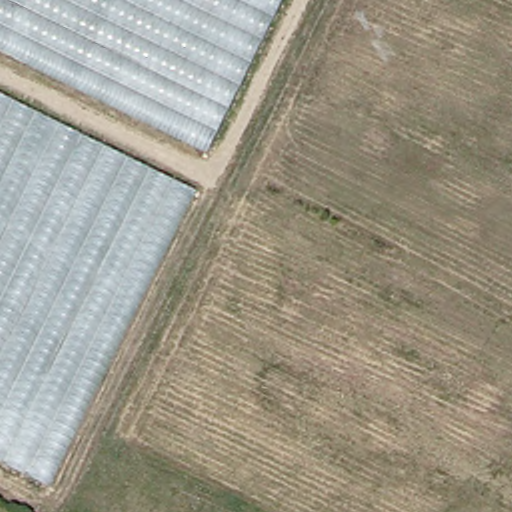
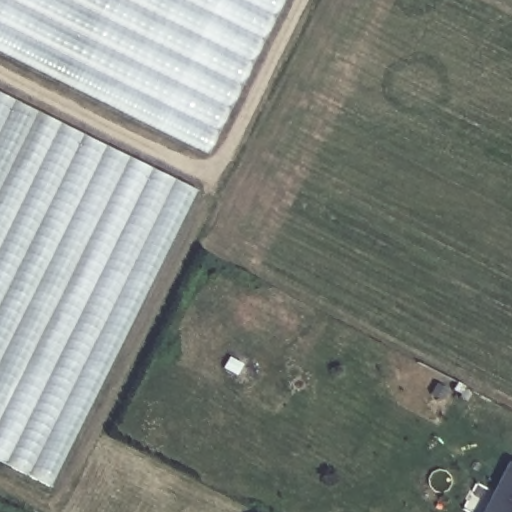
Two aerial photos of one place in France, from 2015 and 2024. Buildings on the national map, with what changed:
unchanged [(284,0),(210,147),(0,48),(0,0),(284,0)]
unchanged [(196,184),(47,484),(0,461),(0,87),(196,184)]
new [(512,467),(512,512),(480,512),(505,463),(512,467)]

